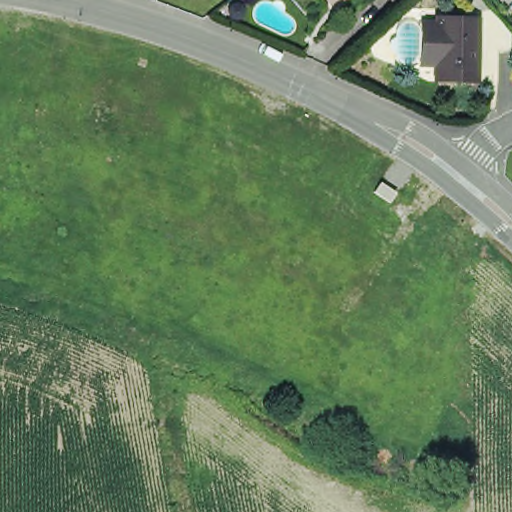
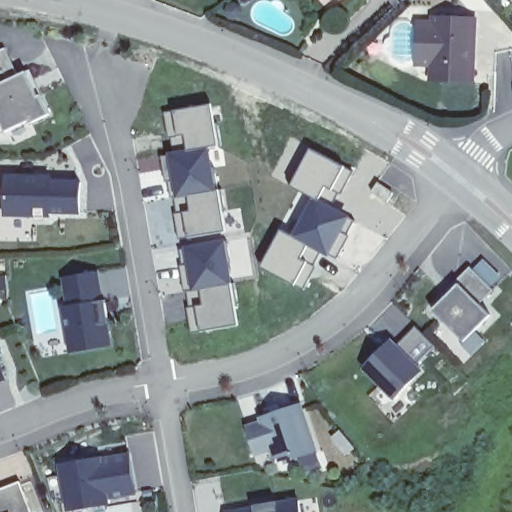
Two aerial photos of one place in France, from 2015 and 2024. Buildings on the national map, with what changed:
unchanged [(325,0),(342,0),(336,4),(332,8),(325,0)]
unchanged [(482,23),(482,27),(481,79),(437,77),(438,71),(425,71),(426,28),(440,28),(440,22),(482,23)]
unchanged [(496,59),(497,79),(481,79),(482,27),(512,28),(512,54),(496,59)]
new [(29,121),(7,132),(0,118),(0,51),(7,48),(20,75),(27,72),(39,96),(41,95),(51,115),(32,124),(29,121)]
new [(211,97),(220,145),(209,147),(227,229),(184,237),(179,207),(186,205),(185,193),(167,197),(162,152),(183,148),(181,132),(169,133),(167,106),(211,97)]
new [(310,147),(354,170),(340,195),(326,188),(320,199),(313,196),(290,184),(310,147)]
new [(82,213),(52,212),(52,218),(30,218),(30,216),(6,215),(7,174),(52,176),(52,179),(82,181),(82,213)]
new [(313,196),(320,199),(356,219),(336,258),(322,252),(291,234),(313,196)]
new [(281,229),(291,234),(322,252),(302,289),(261,267),(281,229)]
new [(225,238),(240,327),(191,332),(187,304),(197,303),(195,287),(183,291),(180,246),(225,238)]
new [(465,341),(434,311),(447,297),(445,294),(470,267),(494,290),(481,304),(491,314),(465,341)]
new [(112,347),(70,354),(62,306),(66,305),(61,276),(100,271),(112,347)]
new [(414,326),(436,349),(421,366),(427,370),(395,403),(360,364),(387,337),(397,343),(414,326)]
new [(0,352),(0,341),(4,351),(0,352)]
new [(0,384),(0,363),(7,381),(0,384)]
new [(295,459),(289,455),(272,460),(270,451),(257,455),(246,425),(259,421),(258,418),(302,402),(320,451),(295,459)]
new [(101,449),(101,458),(131,453),(137,494),(109,499),(109,505),(61,511),(52,459),(101,449)]
new [(0,512),(0,489),(21,481),(33,512),(0,512)]
new [(301,512),(222,512),(301,497),(301,512)]

